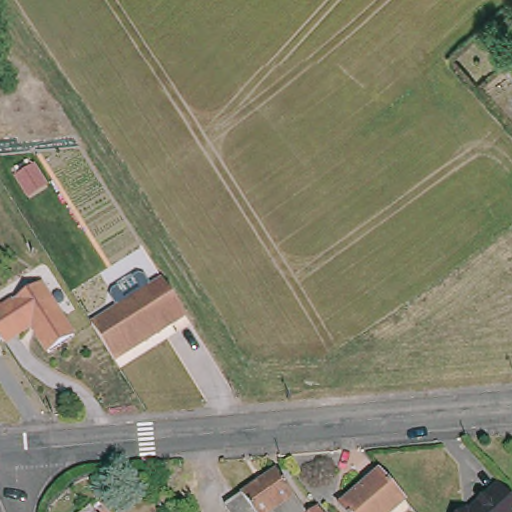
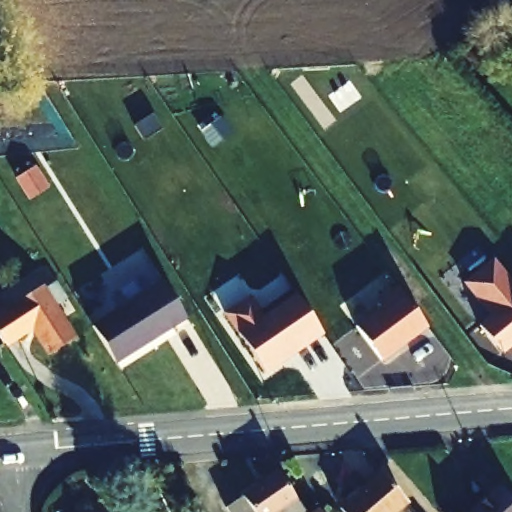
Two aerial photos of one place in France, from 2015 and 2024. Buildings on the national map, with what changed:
new [(505,354),(478,323),(489,314),(462,283),(493,258),(512,279),(512,348),(505,354)]
unchanged [(161,278),(184,314),(114,359),(91,324),(161,278)]
unchanged [(44,287),(76,335),(51,352),(34,327),(20,335),(4,311),(44,287)]
new [(357,328),(383,309),(377,302),(399,287),(429,328),(382,362),(357,328)]
new [(264,315),(295,294),(324,334),(266,376),(224,316),(251,297),(264,315)]
unchanged [(5,346),(0,339),(0,305),(4,311),(20,335),(5,346)]
unchanged [(241,499),(276,476),(303,512),(250,512),(244,503),(241,499)]
unchanged [(406,508),(401,512),(341,512),(381,478),(406,508)]
unchanged [(462,507),(465,509),(497,481),(512,498),(512,512),(456,512),(462,507)]
unchanged [(250,512),(229,512),(244,503),(250,512)]
unchanged [(93,509),(95,512),(89,512),(93,509)]

